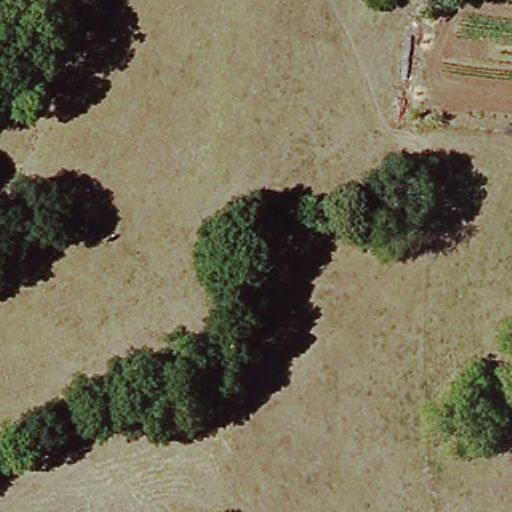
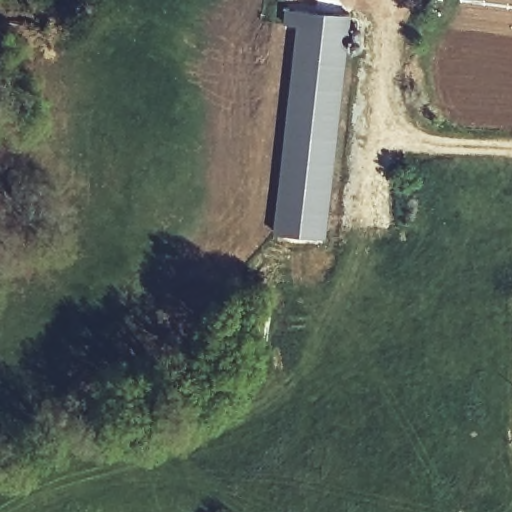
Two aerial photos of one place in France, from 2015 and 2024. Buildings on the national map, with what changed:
new [(350,28),(360,27),(363,28),(364,29),(364,31),(361,44),(362,46),(361,47),(360,49),(359,50),(358,50),(348,50),(326,239),(275,233),(298,24),(285,22),(287,9),(352,15),(350,28)]

